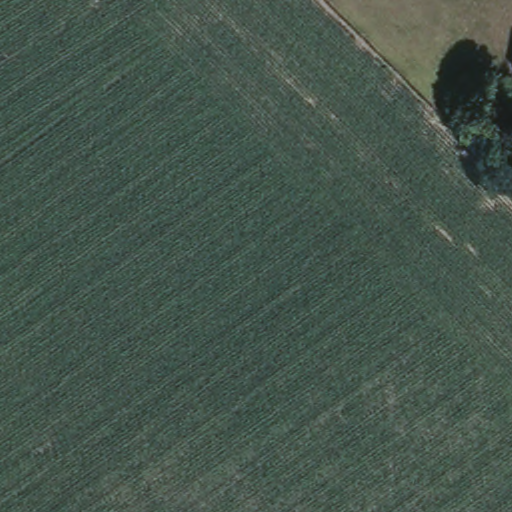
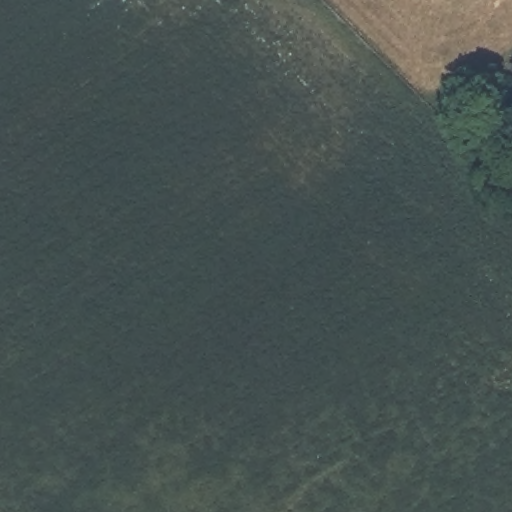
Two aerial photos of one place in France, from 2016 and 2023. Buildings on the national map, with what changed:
unchanged [(507,67),(512,62),(512,72),(507,67)]

